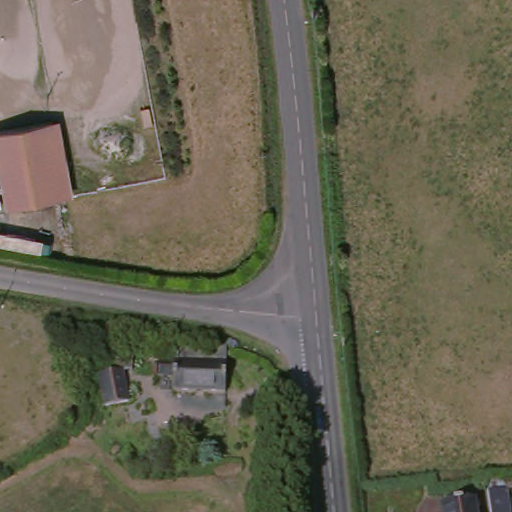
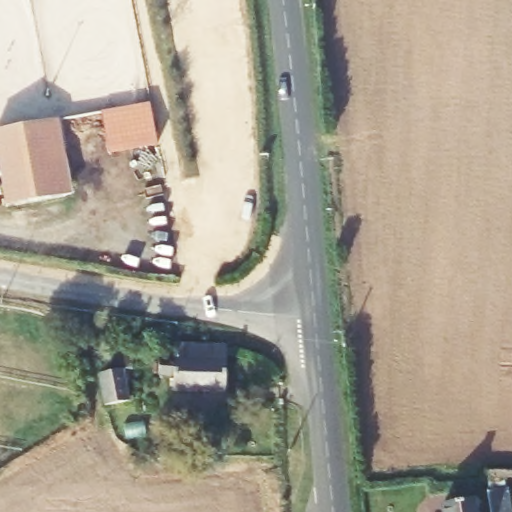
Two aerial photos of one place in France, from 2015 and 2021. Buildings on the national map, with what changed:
new [(150,108),(158,149),(108,158),(101,117),(150,108)]
unchanged [(5,208),(0,171),(0,134),(62,117),(79,198),(5,208)]
unchanged [(210,350),(237,352),(234,399),(179,397),(180,380),(177,381),(173,380),(170,378),(168,376),(166,373),(166,369),(167,366),(169,363),(171,360),(174,359),(178,359),(181,360),(182,348),(210,350)]
unchanged [(113,408),(92,415),(81,381),(99,375),(100,361),(118,363),(117,379),(106,378),(113,408)]
unchanged [(489,489),(512,484),(512,512),(493,512),(489,489)]
unchanged [(479,512),(447,512),(447,502),(478,499),(479,512)]

